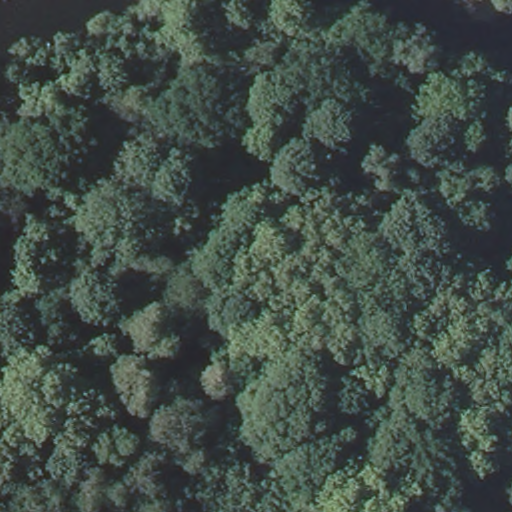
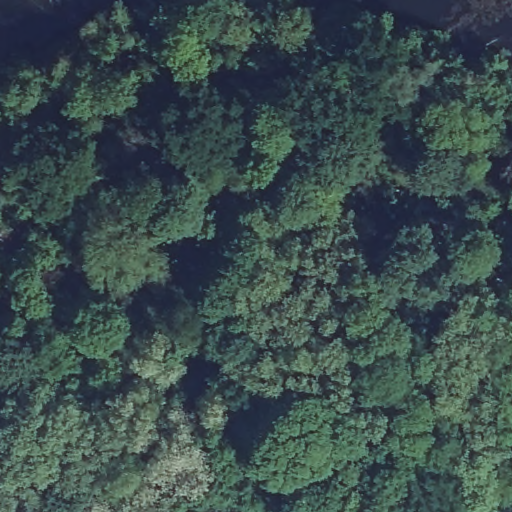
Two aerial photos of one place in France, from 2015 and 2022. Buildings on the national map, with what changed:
unchanged [(377,95),(393,175),(306,193),(290,113),(377,95)]
unchanged [(512,232),(512,316),(501,318),(485,237),(512,232)]
unchanged [(507,345),(512,368),(512,427),(443,441),(436,442),(420,362),(507,345)]

